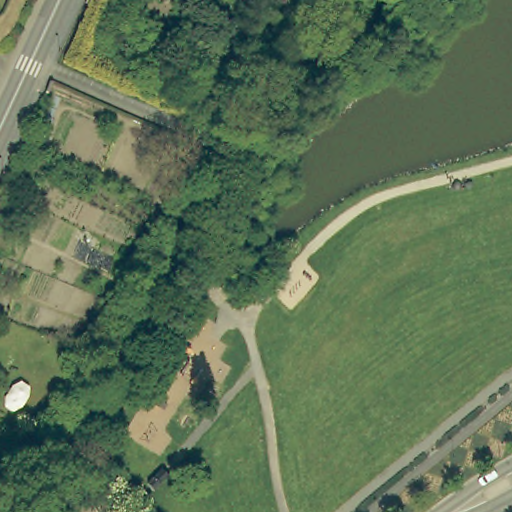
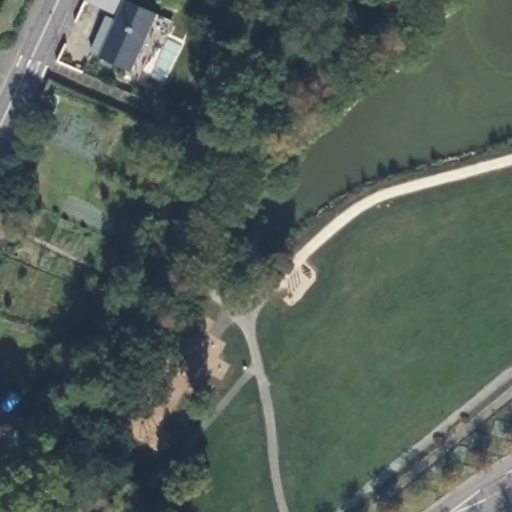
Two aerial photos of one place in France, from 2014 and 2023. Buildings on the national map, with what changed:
new [(159,15),(132,74),(99,59),(117,17),(84,1),(85,0),(127,0),(159,15)]
unchanged [(0,232),(0,215),(7,218),(0,232)]
new [(22,475),(6,501),(0,497),(0,476),(6,466),(22,475)]

